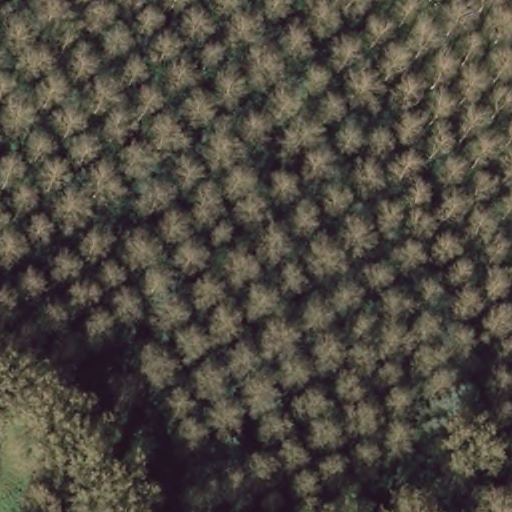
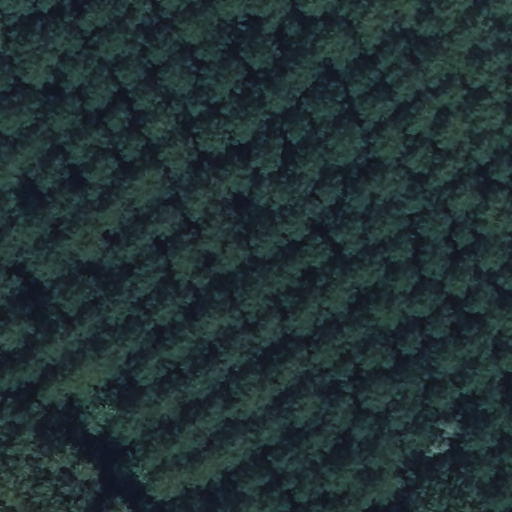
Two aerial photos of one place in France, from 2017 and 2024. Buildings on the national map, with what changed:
[]

